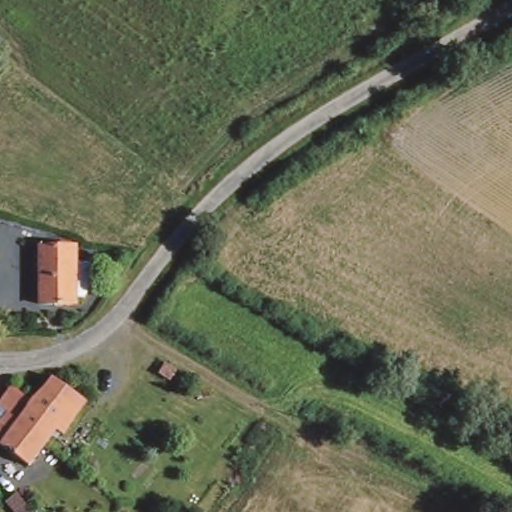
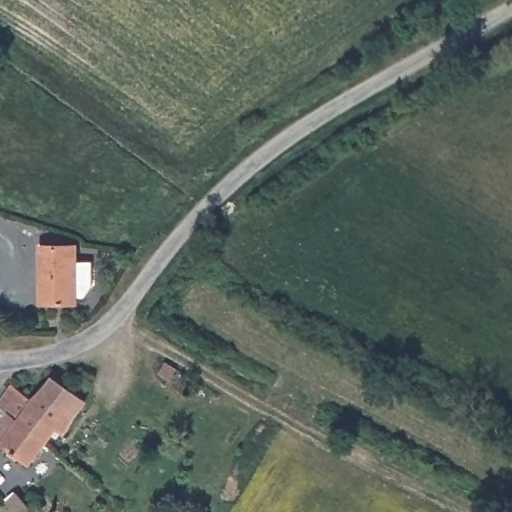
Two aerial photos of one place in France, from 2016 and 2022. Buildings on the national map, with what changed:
unchanged [(82,245),(82,259),(97,259),(96,283),(89,294),(81,294),(81,299),(42,299),(43,244),(82,245)]
unchanged [(178,370),(171,382),(159,374),(166,363),(178,370)]
unchanged [(7,422),(14,413),(3,406),(19,385),(30,394),(40,402),(58,378),(91,401),(68,434),(60,429),(34,465),(14,451),(8,459),(0,454),(0,448),(1,447),(0,447),(0,416),(7,422)]
unchanged [(18,491),(34,512),(15,512),(6,499),(18,491)]

